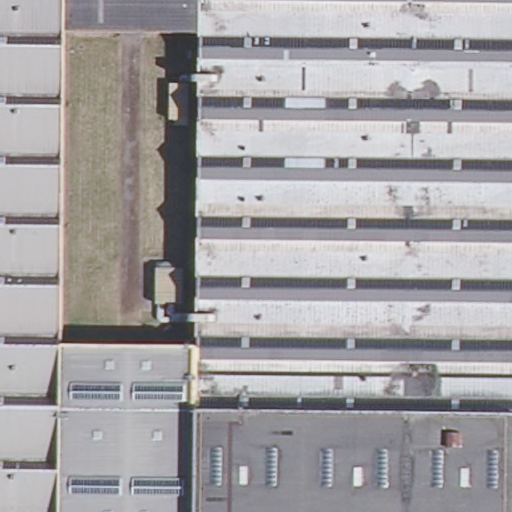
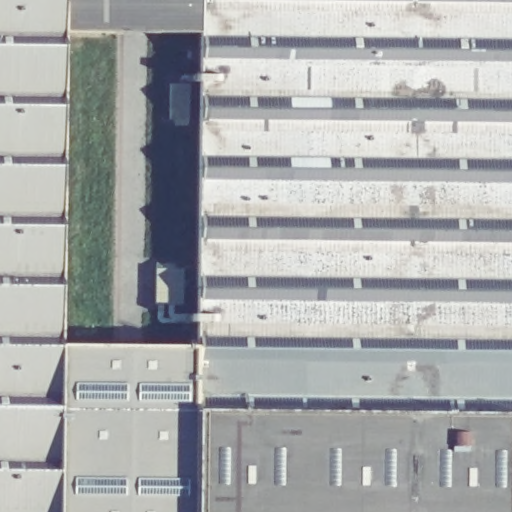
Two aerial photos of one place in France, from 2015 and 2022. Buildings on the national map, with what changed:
unchanged [(63,341),(197,343),(196,407),(195,512),(0,512),(0,0),(67,0),(66,28),(63,341)]
unchanged [(66,28),(67,0),(201,0),(200,29),(66,28)]
unchanged [(197,343),(200,29),(201,0),(512,0),(512,410),(196,407),(197,343)]
unchanged [(196,407),(512,410),(512,512),(195,512),(196,407)]

